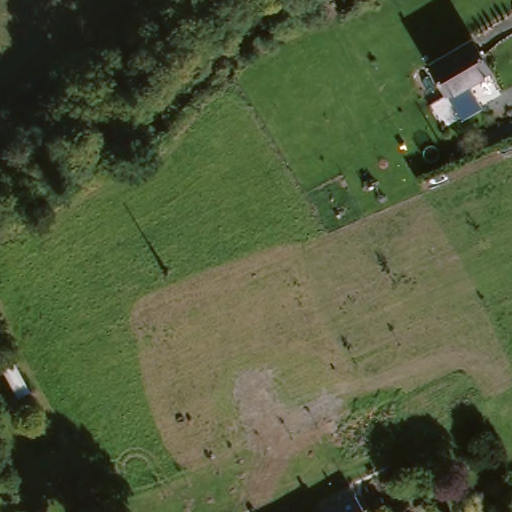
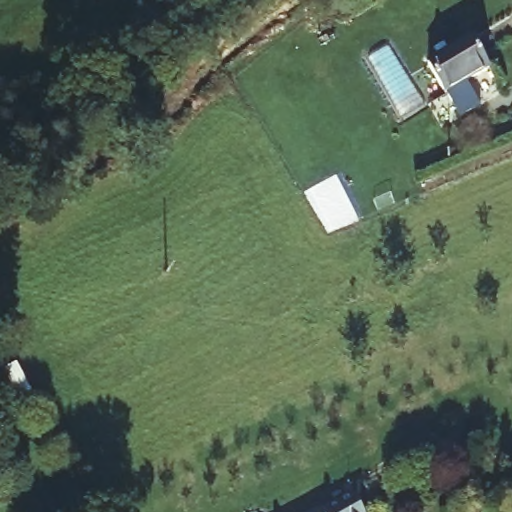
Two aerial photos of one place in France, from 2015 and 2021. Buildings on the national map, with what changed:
unchanged [(440,95),(420,62),(464,37),(483,70),(440,95)]
unchanged [(355,492),(368,512),(322,512),(320,509),(355,492)]
unchanged [(315,512),(320,509),(322,512),(315,512)]

